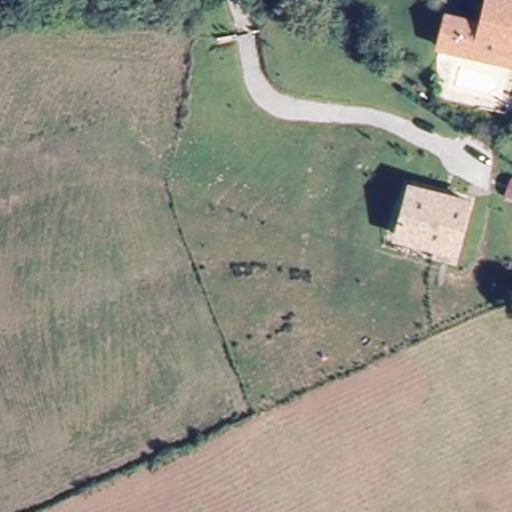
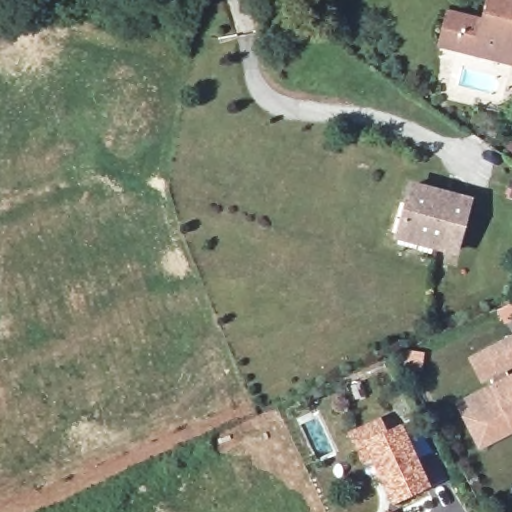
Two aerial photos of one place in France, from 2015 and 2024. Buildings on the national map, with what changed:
unchanged [(493,60),(451,50),(436,47),(443,16),(459,20),(477,24),(483,0),(512,0),(512,46),(511,46),(507,63),(493,60)]
unchanged [(403,251),(407,237),(402,236),(413,188),(470,200),(459,248),(426,241),(423,256),(403,251)]
new [(478,450),(453,405),(482,389),(467,358),(512,335),(512,433),(478,450)]
new [(367,457),(360,464),(347,434),(379,418),(386,432),(401,425),(430,488),(391,507),(367,457)]

